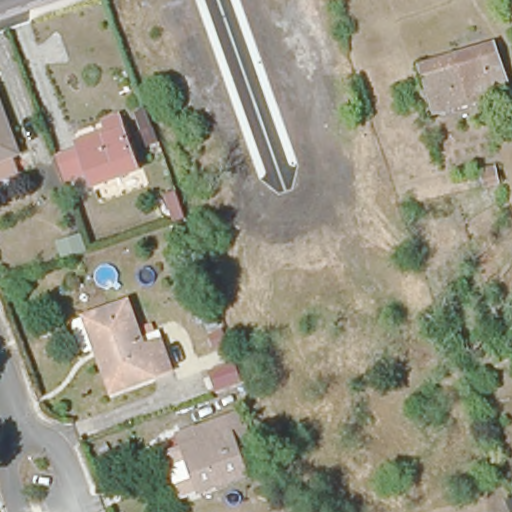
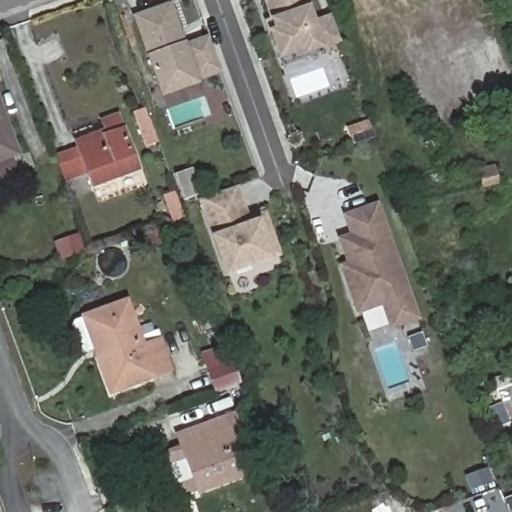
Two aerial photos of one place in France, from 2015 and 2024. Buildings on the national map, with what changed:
new [(315,20),(331,15),(341,44),(325,49),(321,51),(322,53),(283,67),(278,61),(268,31),(264,22),(270,19),(263,0),(309,0),(310,5),(315,20)]
new [(185,42),(208,36),(222,76),(201,84),(161,98),(146,56),(133,17),(172,2),(185,42)]
unchanged [(421,68),(496,47),(507,86),(483,92),(485,102),(435,116),(421,68)]
demolished [(224,86),(292,62),(304,96),(236,121),(224,86)]
unchanged [(0,172),(0,117),(11,149),(6,151),(12,167),(0,172)]
unchanged [(54,166),(49,153),(72,147),(68,131),(116,117),(136,172),(88,186),(82,172),(61,179),(64,191),(51,194),(42,170),(54,166)]
unchanged [(480,174),(496,171),(499,186),(484,189),(480,174)]
new [(249,218),(267,212),(282,257),(274,261),(224,277),(211,237),(199,201),(240,187),(249,218)]
new [(342,215),(380,202),(421,321),(389,331),(380,307),(356,316),(339,266),(346,263),(337,237),(349,234),(342,215)]
unchanged [(86,357),(81,354),(71,328),(73,322),(90,317),(90,316),(112,308),(126,304),(142,348),(159,342),(162,351),(171,373),(158,377),(122,389),(109,393),(101,372),(97,361),(94,354),(86,357)]
unchanged [(235,432),(226,435),(242,481),(196,497),(195,497),(177,452),(173,438),(174,438),(204,427),(230,418),(235,432)]

